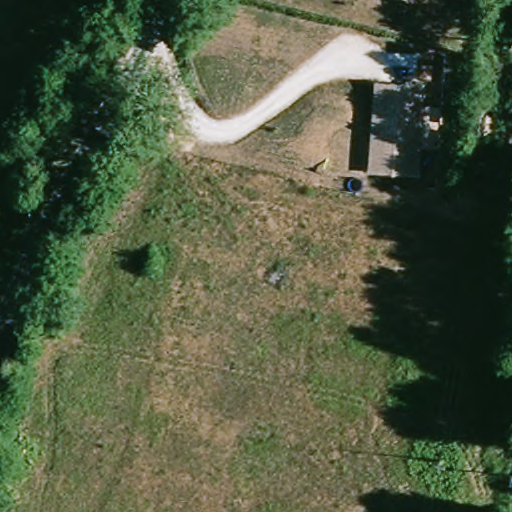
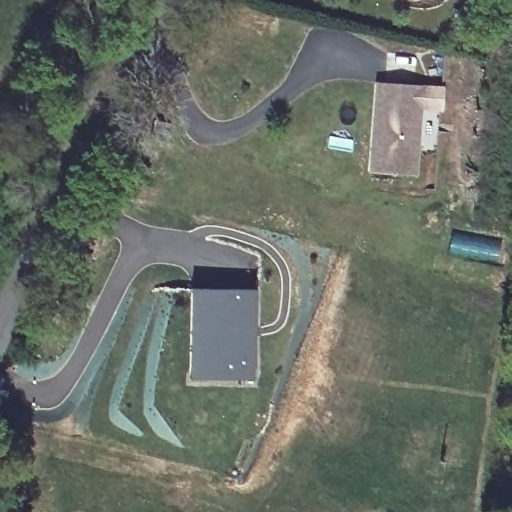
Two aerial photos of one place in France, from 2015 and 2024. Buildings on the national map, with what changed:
unchanged [(426,83),(421,176),(370,172),(377,80),(426,83)]
new [(189,286),(207,286),(205,376),(187,376),(189,286)]
new [(207,286),(254,287),(252,377),(205,376),(207,286)]

